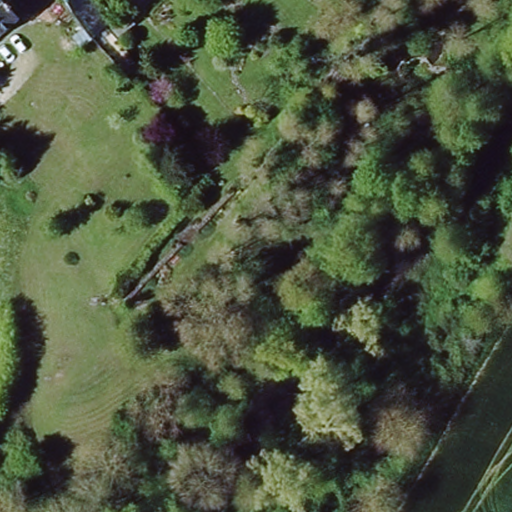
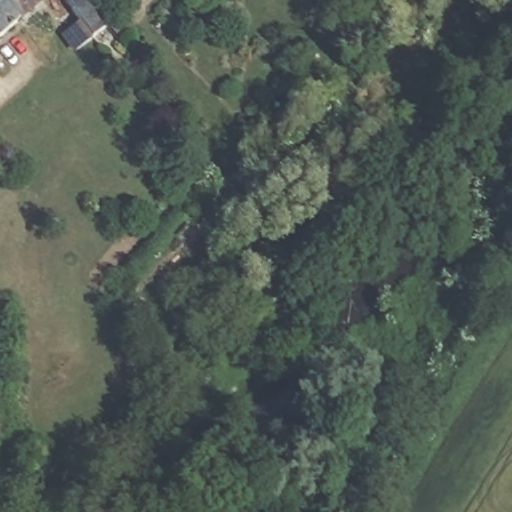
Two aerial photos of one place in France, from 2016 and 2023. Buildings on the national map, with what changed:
unchanged [(0,0),(47,0),(0,38),(0,0)]
unchanged [(115,22),(80,50),(72,41),(95,24),(77,0),(98,0),(115,22)]
unchanged [(380,32),(407,54),(404,59),(400,65),(395,71),(367,50),(380,32)]

